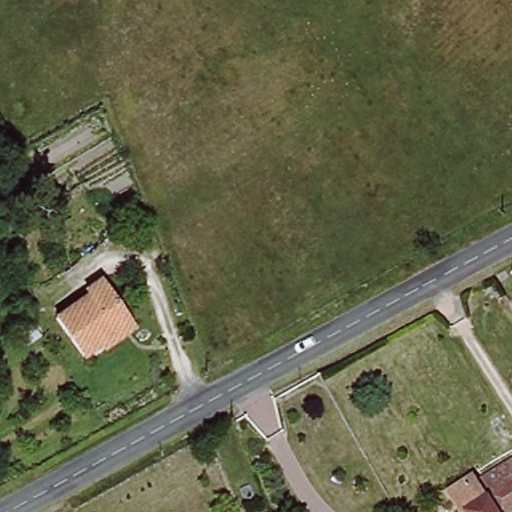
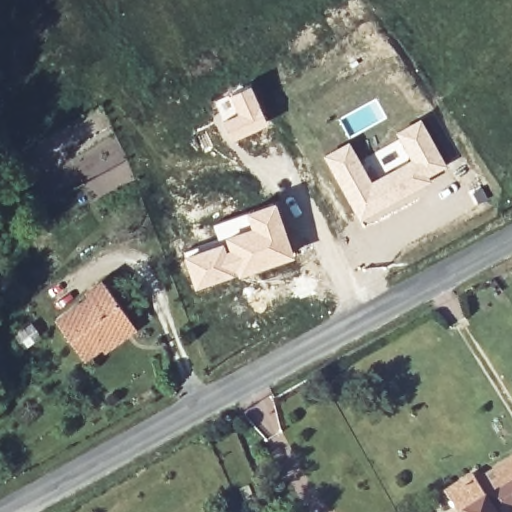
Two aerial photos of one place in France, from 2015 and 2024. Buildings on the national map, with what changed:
new [(250,83),(268,122),(232,140),(213,101),(250,83)]
new [(349,139),(372,178),(407,158),(393,131),(421,116),(449,169),(364,227),(322,154),(349,139)]
new [(217,239),(211,223),(274,199),(295,255),(249,273),(194,289),(182,252),(217,239)]
unchanged [(135,330),(82,359),(56,312),(110,284),(135,330)]
unchanged [(512,466),(512,512),(465,512),(453,493),(481,476),(485,482),(486,481),(497,474),(512,466)]

